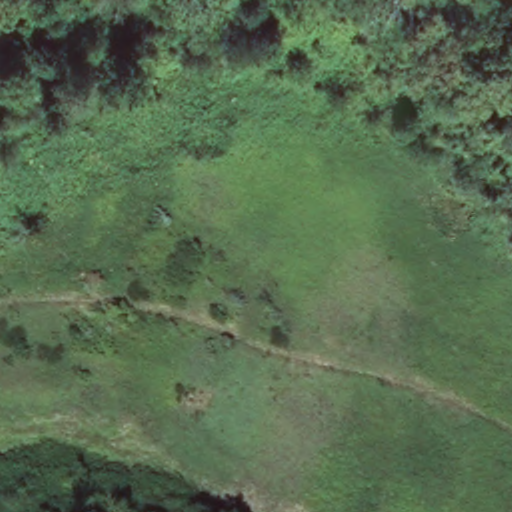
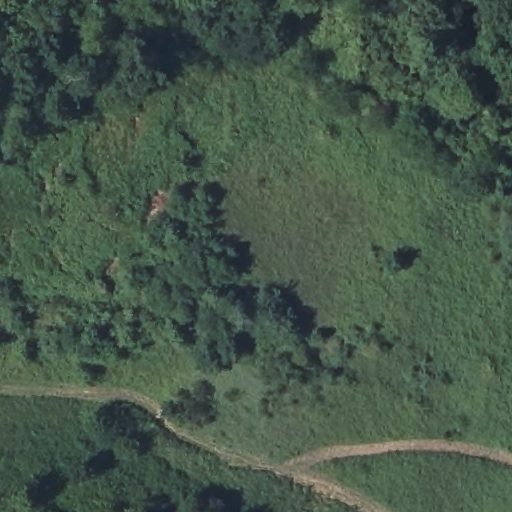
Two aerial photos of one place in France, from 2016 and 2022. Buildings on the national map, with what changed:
[]

